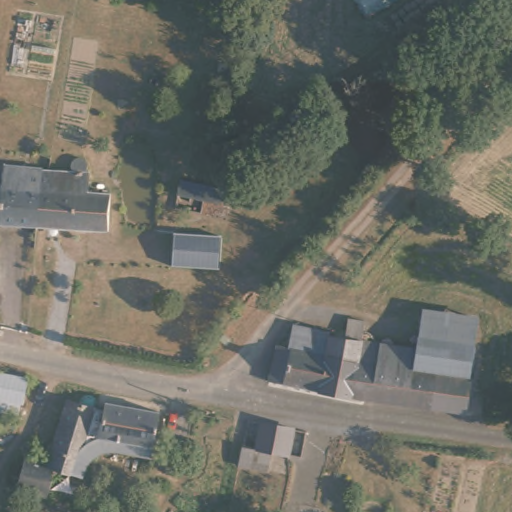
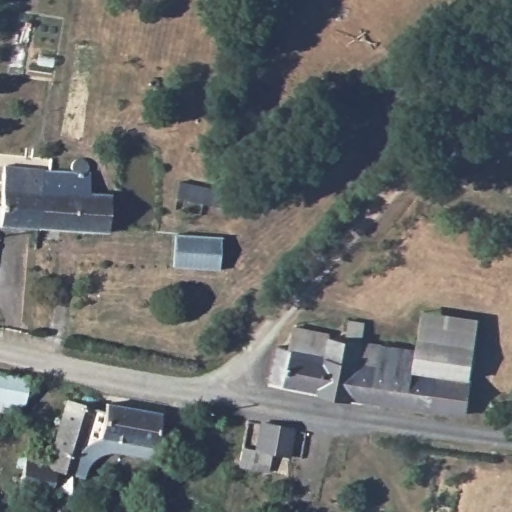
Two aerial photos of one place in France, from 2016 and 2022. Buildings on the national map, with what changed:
unchanged [(71,167),(71,162),(73,159),(76,156),(79,155),(83,154),(87,155),(90,157),(93,160),(94,163),(94,166),(96,166),(95,192),(114,194),(111,232),(37,228),(37,166),(45,167),(71,167)]
unchanged [(37,166),(37,228),(0,226),(0,203),(2,164),(37,166)]
unchanged [(234,192),(229,209),(176,197),(181,179),(234,192)]
unchanged [(168,239),(219,244),(218,259),(227,262),(226,283),(166,280),(168,239)]
unchanged [(478,321),(470,381),(416,374),(419,352),(424,313),(478,321)]
unchanged [(330,337),(330,340),(348,342),(350,325),(368,327),(366,345),(419,352),(416,374),(470,381),(464,417),(355,402),(354,405),(318,399),(318,396),(271,383),(281,347),(291,350),(296,331),(330,337)]
unchanged [(22,407),(15,407),(11,420),(0,416),(0,378),(23,383),(22,407)]
unchanged [(54,497),(21,489),(30,453),(53,458),(68,396),(78,399),(79,394),(83,392),(85,392),(90,393),(94,397),(93,406),(102,407),(103,400),(159,407),(158,413),(164,414),(158,453),(117,447),(111,448),(105,451),(100,453),(95,458),(92,462),(89,468),(88,473),(62,467),(54,497)]
unchanged [(293,433),(289,458),(272,456),(269,473),(241,468),(245,451),(255,452),(259,427),(293,433)]

